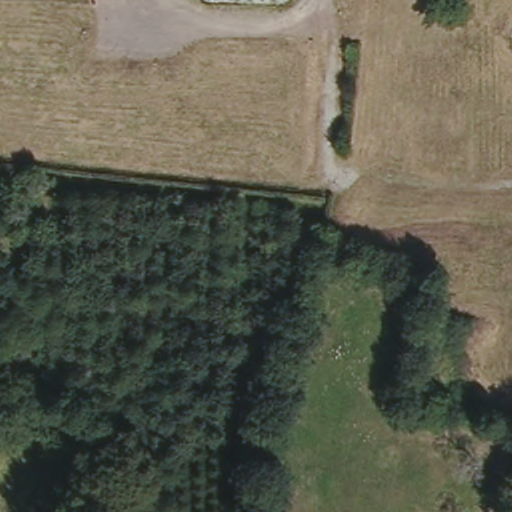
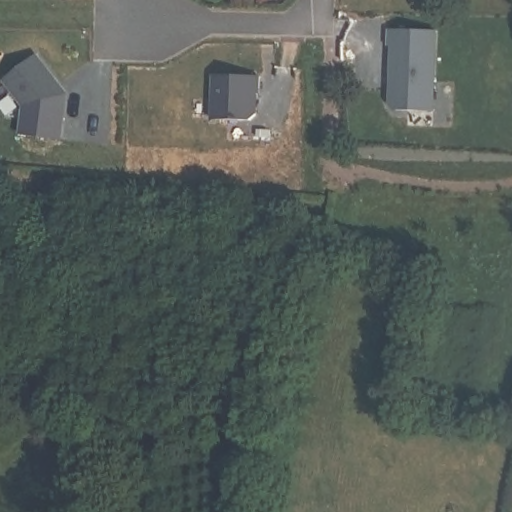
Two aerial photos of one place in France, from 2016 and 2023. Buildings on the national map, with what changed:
demolished [(512,26),(512,28),(512,41),(498,45),(496,30),(512,26)]
new [(440,31),(437,114),(408,114),(408,118),(390,119),(391,31),(440,31)]
new [(37,54),(67,96),(64,142),(21,139),(24,109),(3,83),(37,54)]
new [(260,78),(258,123),(213,122),(214,78),(260,78)]

